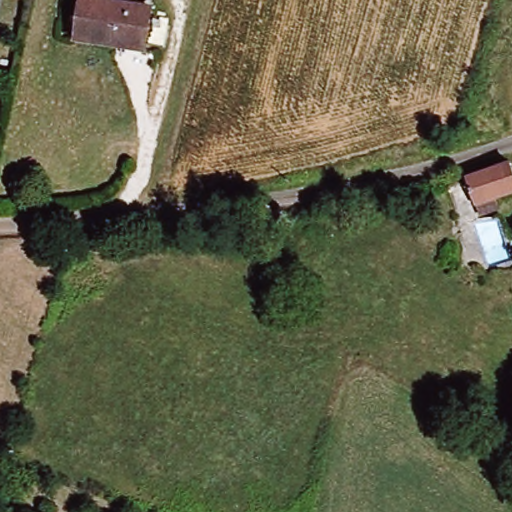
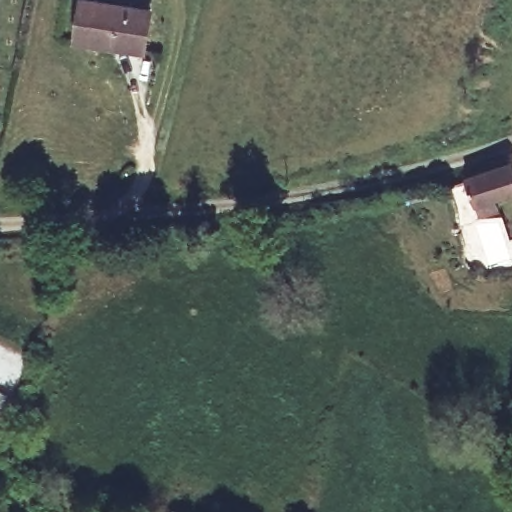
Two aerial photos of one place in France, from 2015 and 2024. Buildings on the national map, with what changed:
unchanged [(88,0),(91,0),(113,4),(103,47),(81,44),(88,0)]
unchanged [(148,54),(103,47),(113,4),(155,11),(148,54)]
unchanged [(470,180),(512,167),(512,198),(498,202),(501,212),(481,218),(478,208),(470,180)]

